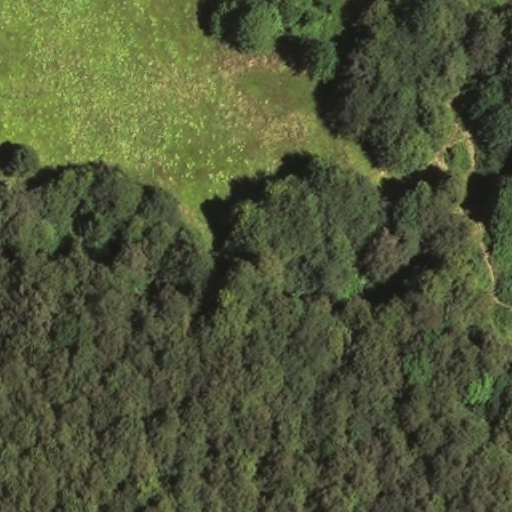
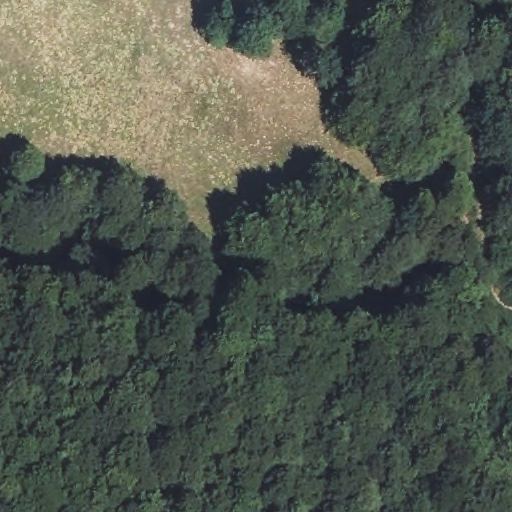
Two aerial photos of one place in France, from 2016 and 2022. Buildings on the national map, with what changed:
unchanged [(297,27),(264,30),(263,0),(295,0),(297,27)]

